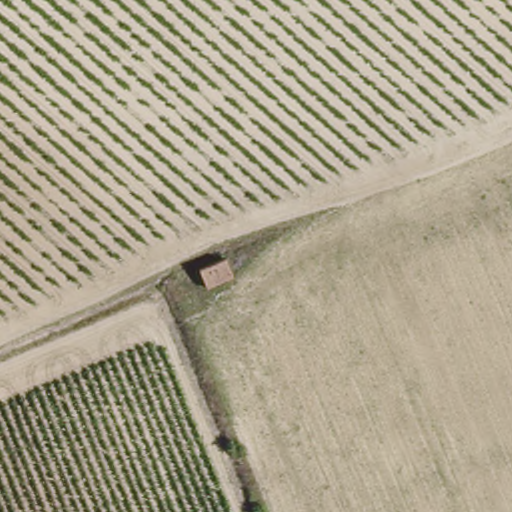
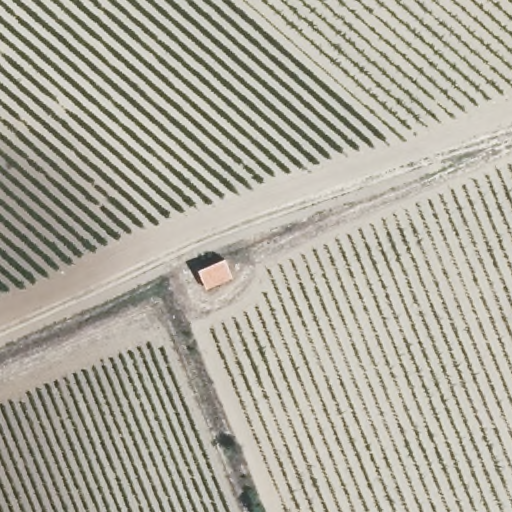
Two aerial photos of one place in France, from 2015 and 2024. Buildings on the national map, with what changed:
unchanged [(195,270),(220,260),(226,279),(202,289),(195,270)]

